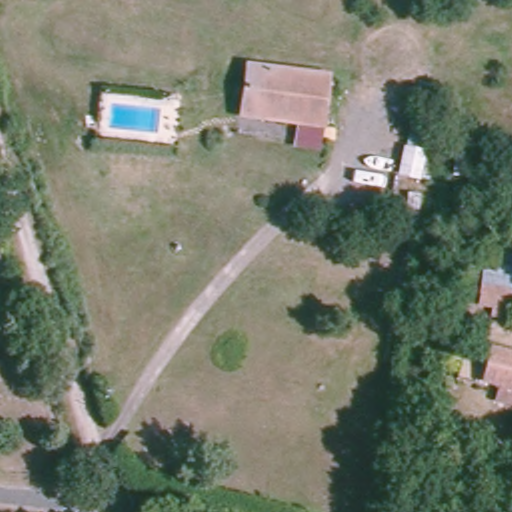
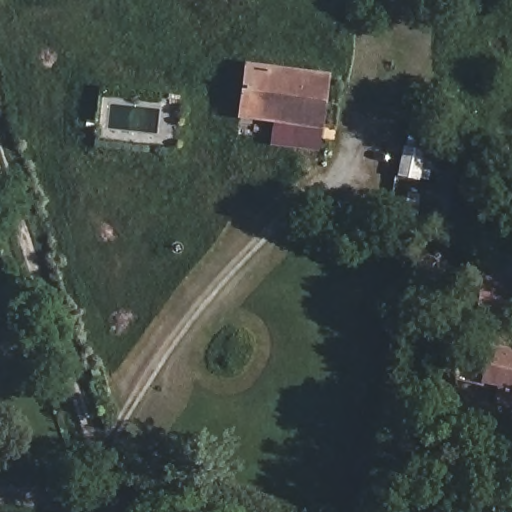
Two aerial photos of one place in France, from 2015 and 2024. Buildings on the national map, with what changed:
unchanged [(242,114),(250,63),(333,73),(326,125),(305,121),(265,116),(242,114)]
unchanged [(418,231),(406,229),(410,192),(423,193),(418,231)]
unchanged [(493,307),(478,303),(492,244),(512,247),(512,308),(510,321),(491,317),(493,307)]
unchanged [(488,377),(483,377),(491,346),(512,351),(512,402),(494,397),(498,380),(488,377)]

